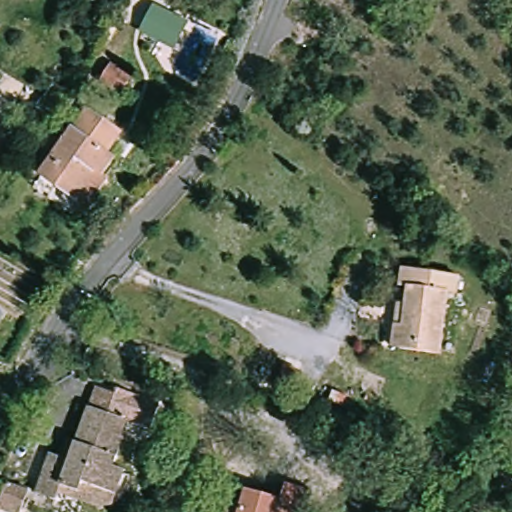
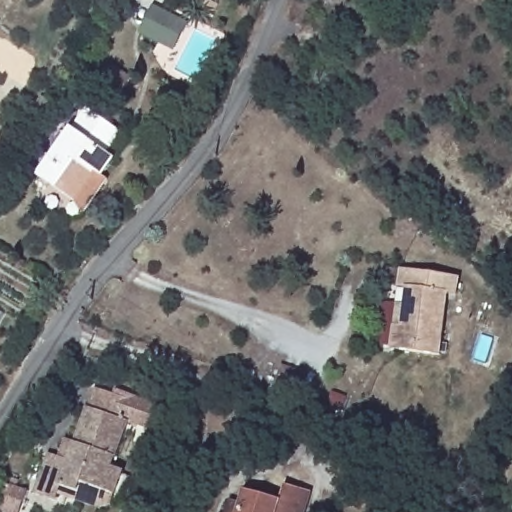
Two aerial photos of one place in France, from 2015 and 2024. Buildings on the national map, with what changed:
unchanged [(173,51),(153,41),(167,12),(189,21),(173,51)]
unchanged [(128,76),(118,92),(98,82),(108,66),(128,76)]
unchanged [(77,202),(43,179),(85,112),(115,130),(102,150),(115,158),(105,177),(86,206),(77,202)]
unchanged [(0,160),(0,150),(5,154),(0,160)]
unchanged [(396,327),(405,328),(409,296),(400,295),(403,271),(458,277),(457,301),(446,299),(438,355),(393,351),(396,327)]
unchanged [(93,390),(122,400),(138,404),(139,401),(162,407),(155,431),(132,424),(119,467),(127,470),(120,493),(86,484),(81,498),(62,492),(59,502),(38,497),(50,456),(56,436),(78,441),(87,410),(93,390)]
unchanged [(29,495),(21,512),(14,512),(0,507),(0,505),(5,484),(29,495)]
unchanged [(278,503),(285,486),(312,495),(307,512),(242,512),(247,496),(278,503)]
unchanged [(242,512),(229,512),(230,508),(242,512)]

